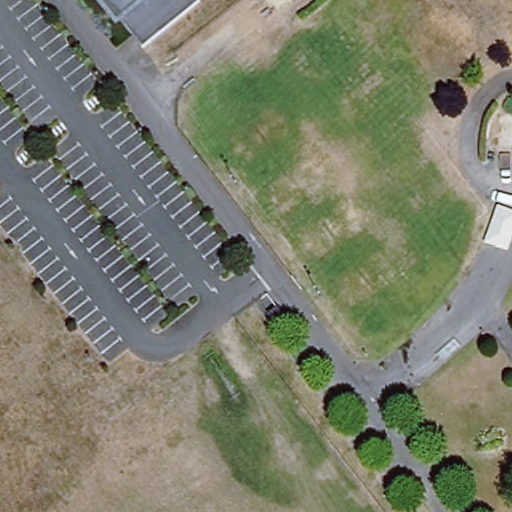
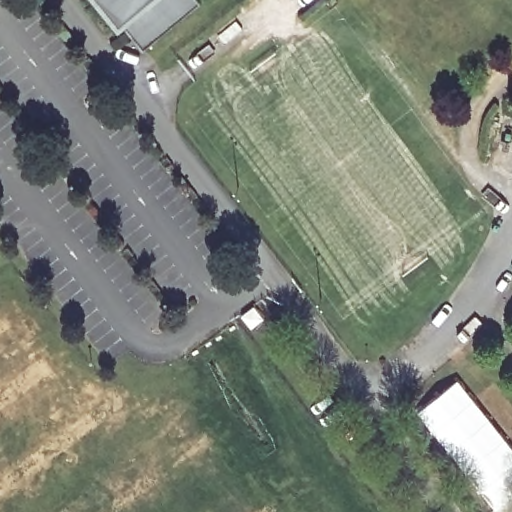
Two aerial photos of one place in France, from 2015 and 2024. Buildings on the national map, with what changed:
unchanged [(102,0),(197,0),(141,47),(102,0)]
new [(457,378),(512,447),(512,500),(498,512),(469,477),(417,410),(457,378)]

